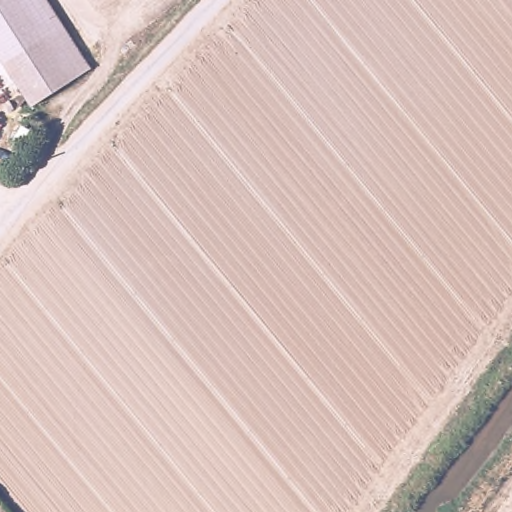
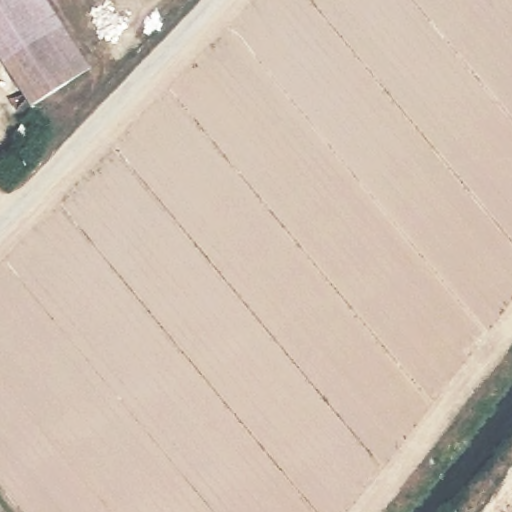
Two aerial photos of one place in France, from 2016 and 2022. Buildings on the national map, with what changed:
unchanged [(36,102),(0,46),(0,0),(54,0),(95,64),(36,102)]

